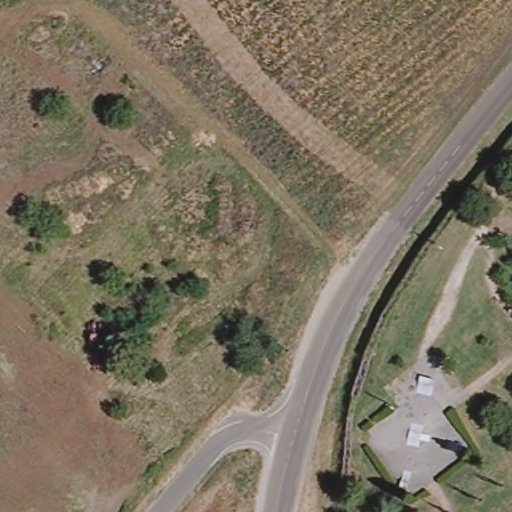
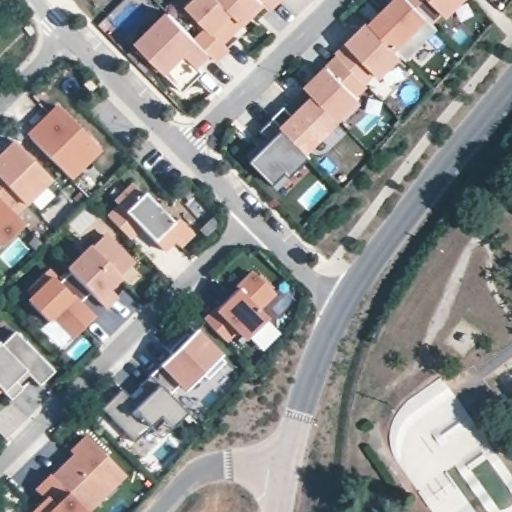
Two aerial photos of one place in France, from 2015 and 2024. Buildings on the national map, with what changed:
new [(205,30),(183,8),(191,0),(278,0),(269,9),(264,5),(245,24),(244,24),(223,43),(229,49),(216,60),(210,53),(196,67),(203,74),(184,94),(132,44),(167,9),(196,39),(205,30)]
new [(248,155),(262,141),(266,146),(273,139),(261,129),(284,105),(303,84),(313,94),(306,86),(338,54),(336,53),(369,21),(378,30),(398,11),(392,4),(396,0),(461,0),(448,14),(444,10),(433,21),(439,28),(407,59),(401,54),(380,75),(376,70),(365,81),(367,84),(356,94),(360,98),(306,151),(311,156),(294,174),(278,188),(270,176),(248,155)]
new [(392,4),(398,11),(378,30),(372,24),(392,4)]
new [(104,149),(73,179),(27,134),(55,106),(104,149)]
new [(15,217),(24,224),(1,248),(0,247),(0,153),(12,142),(53,182),(15,217)]
new [(144,193),(173,222),(179,217),(194,235),(182,249),(174,242),(163,253),(142,229),(133,240),(107,215),(118,204),(114,199),(132,182),(144,193)]
new [(137,261),(121,277),(124,279),(113,289),(119,298),(107,309),(90,292),(80,303),(95,318),(74,339),(55,319),(49,324),(27,300),(29,298),(24,294),(50,270),(59,280),(69,270),(67,268),(90,245),(92,247),(106,234),(137,261)]
new [(276,292),(260,310),(269,319),(246,342),(237,334),(230,343),(206,319),(217,308),(237,287),(251,270),(276,292)]
new [(226,363),(210,379),(205,373),(184,392),(179,384),(169,395),(187,414),(173,428),(160,417),(149,427),(136,441),(102,409),(122,389),(129,396),(158,365),(170,354),(163,348),(187,324),(226,363)]
new [(41,388),(26,373),(17,381),(24,389),(12,401),(1,391),(0,391),(0,344),(1,345),(15,332),(57,373),(41,388)]
new [(125,477),(88,512),(31,512),(44,499),(34,489),(73,453),(70,451),(85,434),(125,477)]

